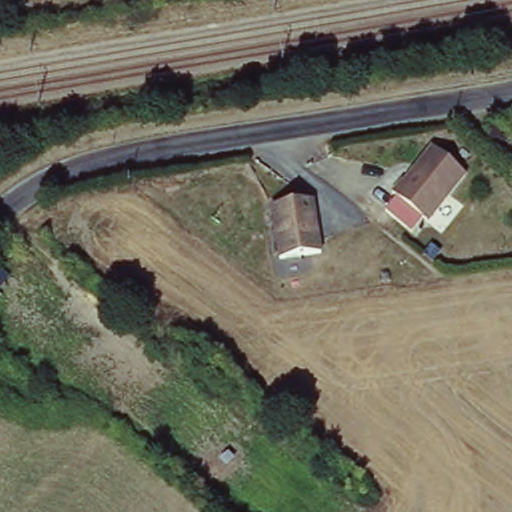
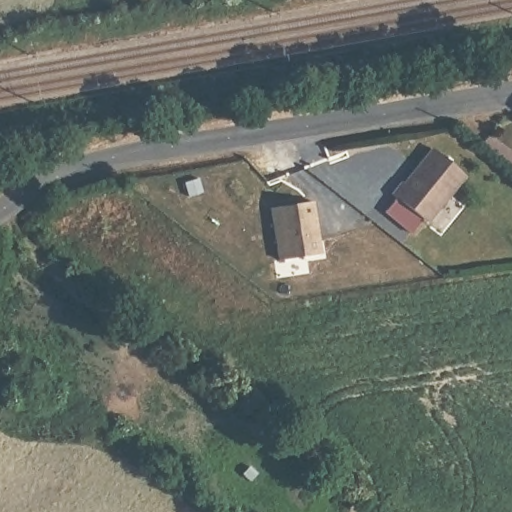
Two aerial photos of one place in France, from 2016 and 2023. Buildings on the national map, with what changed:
unchanged [(436,218),(400,190),(409,178),(412,179),(439,144),(473,169),(436,218)]
unchanged [(275,214),(312,197),(335,244),(298,262),(275,214)]

